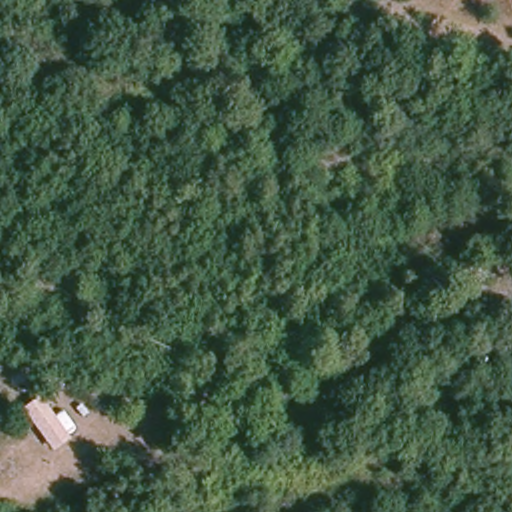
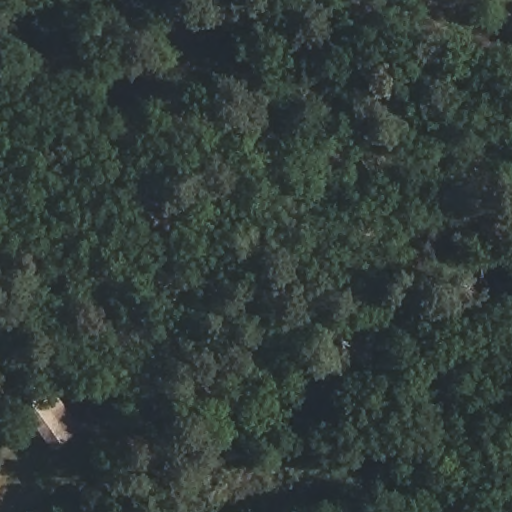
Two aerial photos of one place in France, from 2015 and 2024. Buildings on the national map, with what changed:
unchanged [(54,450),(24,406),(39,395),(52,415),(61,410),(72,426),(65,431),(71,438),(54,450)]

